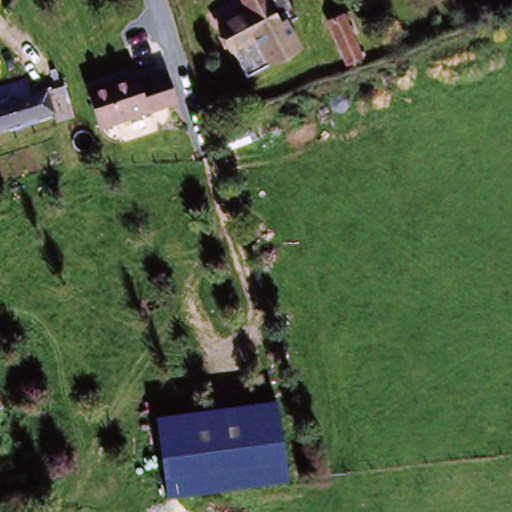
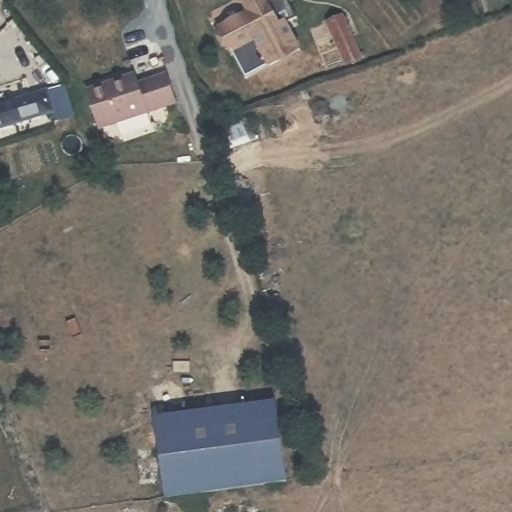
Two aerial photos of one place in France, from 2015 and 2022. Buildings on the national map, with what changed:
unchanged [(269,4),(283,45),(231,61),(223,36),(256,25),(250,9),(269,4)]
unchanged [(357,67),(344,71),(329,19),(341,15),(357,67)]
unchanged [(139,85),(167,75),(176,101),(98,127),(88,94),(87,90),(110,83),(136,75),(139,85)]
unchanged [(6,107),(45,95),(51,114),(11,126),(0,130),(0,109),(6,107)]
unchanged [(213,120),(236,113),(243,135),(246,141),(221,149),(219,141),(213,120)]
unchanged [(286,480),(167,499),(156,418),(276,400),(286,480)]

